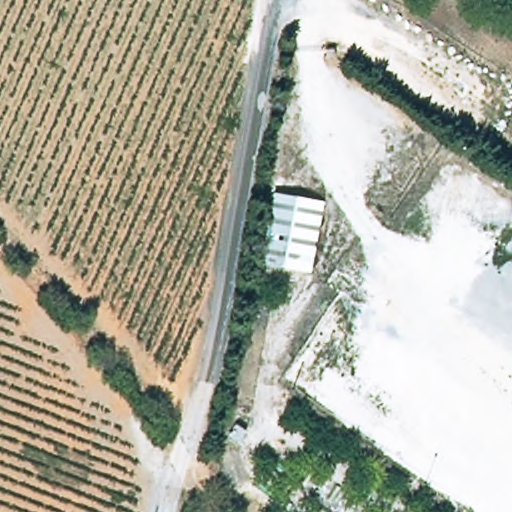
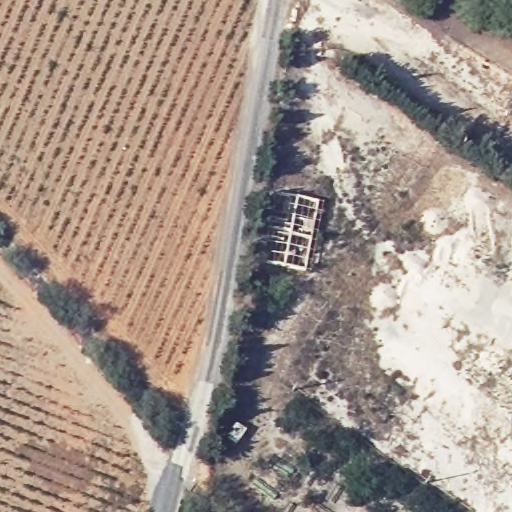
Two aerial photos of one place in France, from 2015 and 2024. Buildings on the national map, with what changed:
unchanged [(305,263),(258,254),(272,183),(320,192),(305,263)]

